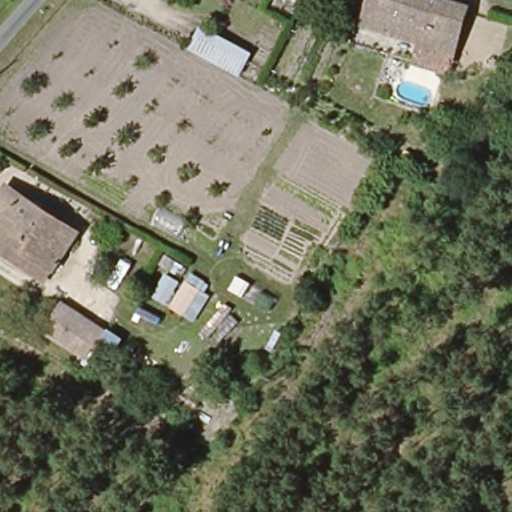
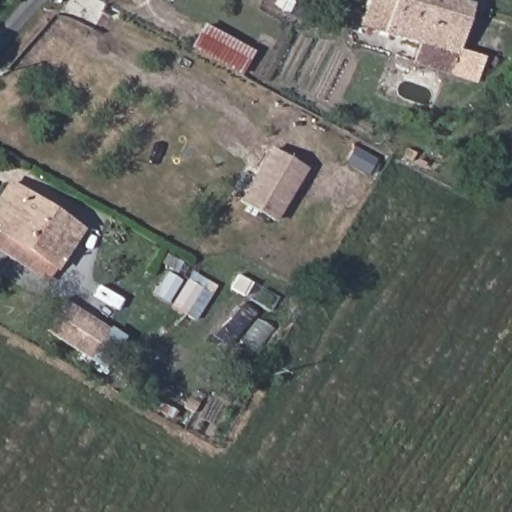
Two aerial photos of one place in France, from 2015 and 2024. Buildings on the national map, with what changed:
unchanged [(375,6),(369,5),(371,0),(448,0),(466,6),(476,9),(460,57),(451,55),(369,25),(375,6)]
unchanged [(205,24),(255,54),(245,84),(192,52),(205,24)]
new [(275,224),(237,201),(269,147),(306,169),(275,224)]
unchanged [(0,235),(6,226),(9,222),(0,215),(0,207),(16,182),(23,187),(88,230),(67,262),(65,265),(58,275),(0,236),(0,235)]
unchanged [(176,270),(216,298),(199,325),(156,297),(176,270)]
unchanged [(69,303),(112,330),(96,357),(52,330),(69,303)]

